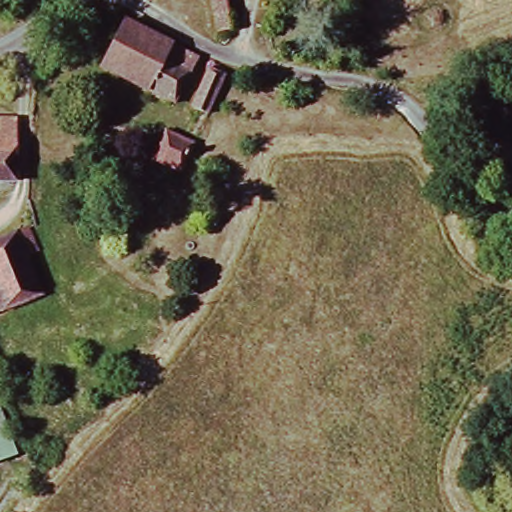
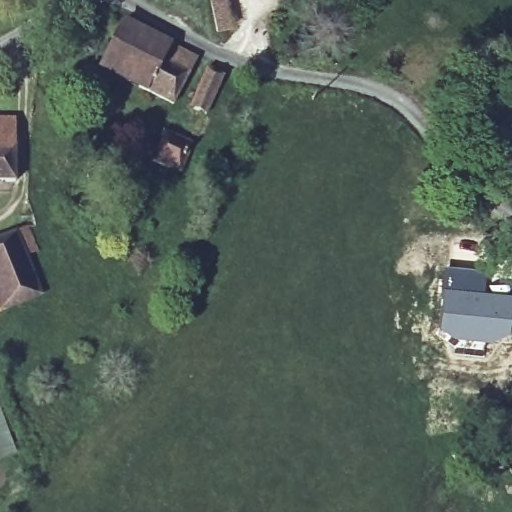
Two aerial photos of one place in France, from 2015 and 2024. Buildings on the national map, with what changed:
unchanged [(210,0),(225,0),(230,25),(215,26),(210,0)]
unchanged [(172,96),(101,62),(126,17),(195,53),(172,96)]
unchanged [(224,74),(207,111),(189,101),(208,66),(224,74)]
unchanged [(11,177),(0,178),(0,113),(10,114),(11,177)]
unchanged [(192,140),(178,168),(151,153),(165,125),(192,140)]
unchanged [(35,247),(24,251),(38,291),(0,305),(0,233),(26,224),(35,247)]
new [(442,266),(485,273),(482,292),(512,295),(512,333),(507,333),(506,337),(505,337),(505,338),(490,342),(458,340),(435,330),(442,266)]
unchanged [(0,461),(0,412),(17,455),(0,461)]

